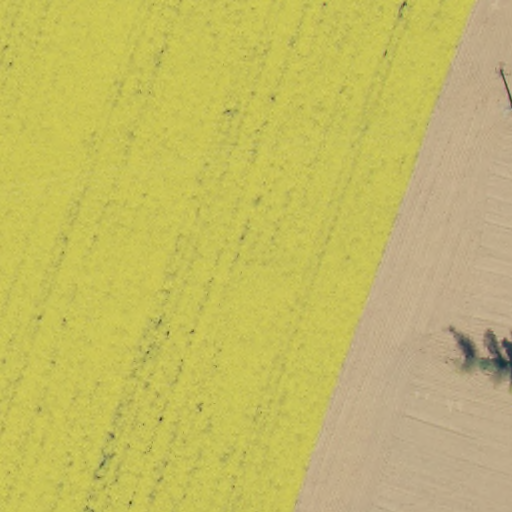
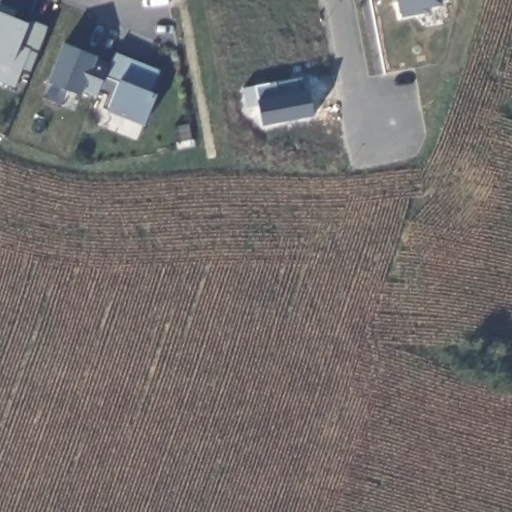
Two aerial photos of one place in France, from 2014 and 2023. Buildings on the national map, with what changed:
new [(398,0),(441,0),(442,5),(400,13),(398,0)]
new [(20,70),(15,87),(0,82),(0,65),(0,64),(0,4),(16,10),(14,19),(29,24),(30,19),(49,26),(31,75),(20,70)]
new [(100,92),(98,97),(83,90),(80,95),(47,82),(62,44),(97,56),(112,63),(100,92)]
new [(153,91),(159,94),(145,126),(107,111),(115,95),(100,92),(112,63),(116,51),(160,70),(153,91)]

